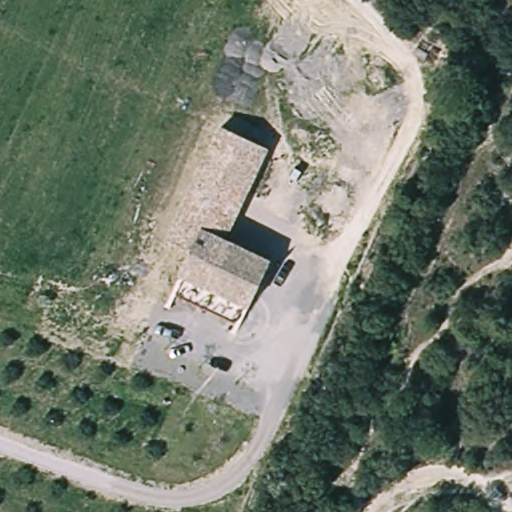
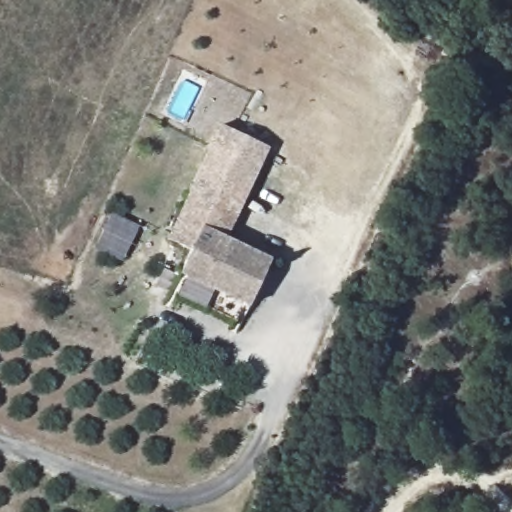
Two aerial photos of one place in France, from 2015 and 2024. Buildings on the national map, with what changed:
unchanged [(232,238),(273,259),(247,309),(176,276),(186,250),(166,238),(216,124),(271,148),(232,238)]
new [(112,213),(141,227),(123,263),(94,249),(112,213)]

